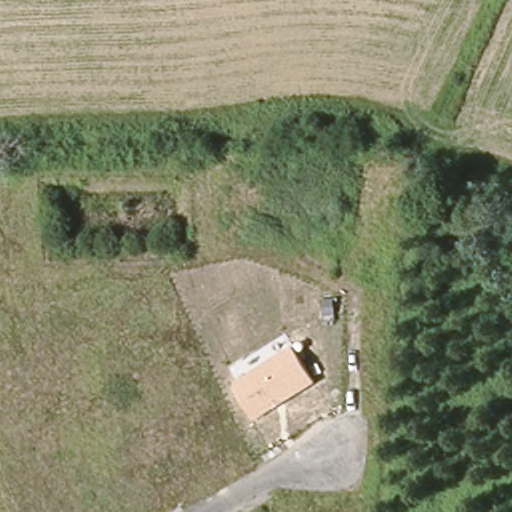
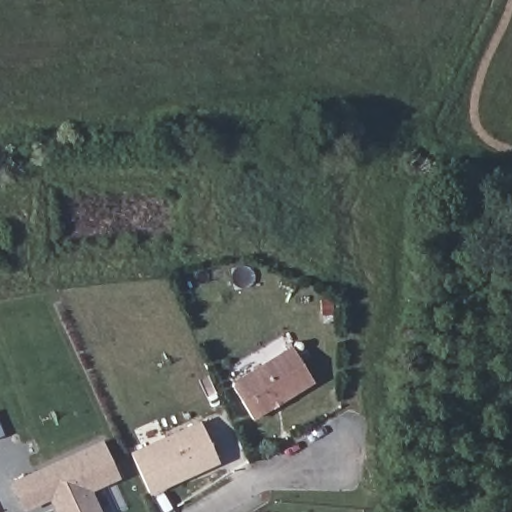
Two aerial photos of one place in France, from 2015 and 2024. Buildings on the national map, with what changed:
unchanged [(252,420),(233,387),(235,380),(291,346),(314,383),(252,420)]
new [(150,496),(130,453),(199,422),(219,465),(150,496)]
new [(119,479),(90,491),(100,512),(57,512),(56,510),(59,501),(56,496),(25,510),(14,483),(102,444),(119,479)]

